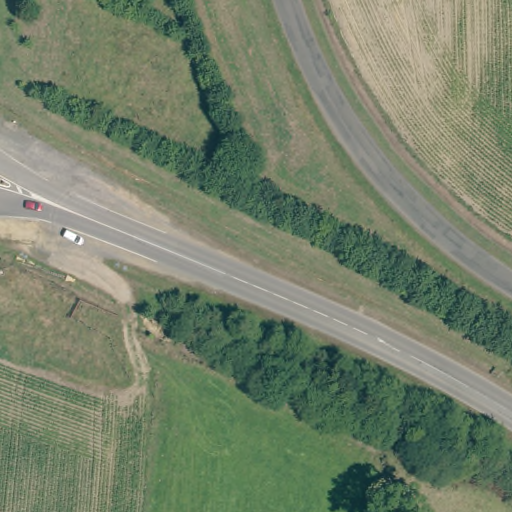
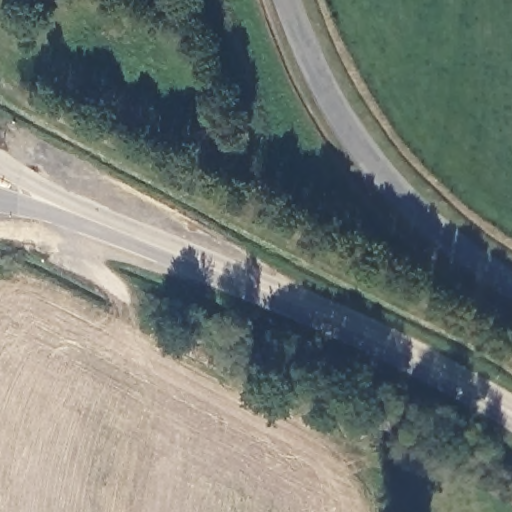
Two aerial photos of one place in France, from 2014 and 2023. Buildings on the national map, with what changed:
[]

